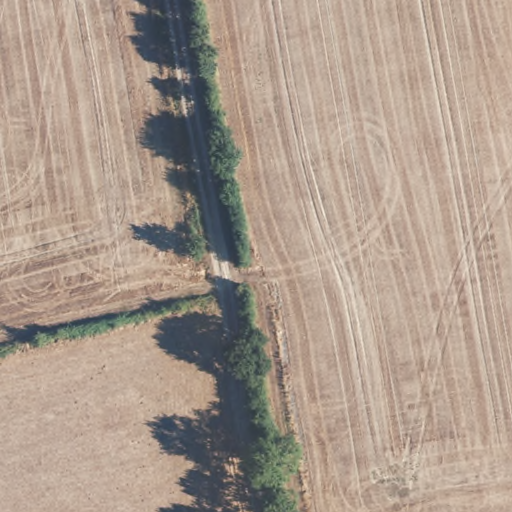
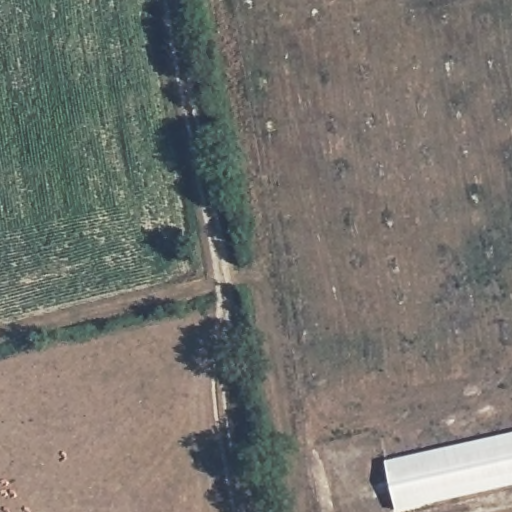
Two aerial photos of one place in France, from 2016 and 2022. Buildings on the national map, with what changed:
new [(395,512),(385,461),(512,434),(512,487),(400,512),(395,512)]

